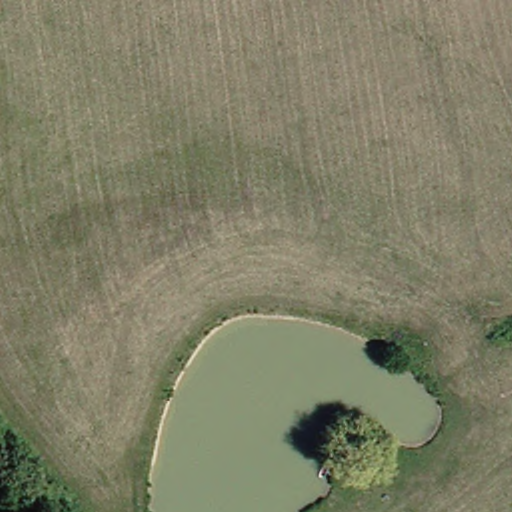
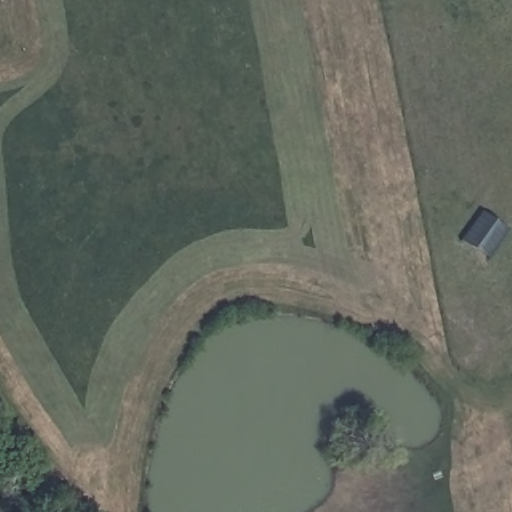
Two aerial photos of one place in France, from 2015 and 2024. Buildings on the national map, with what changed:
[]

